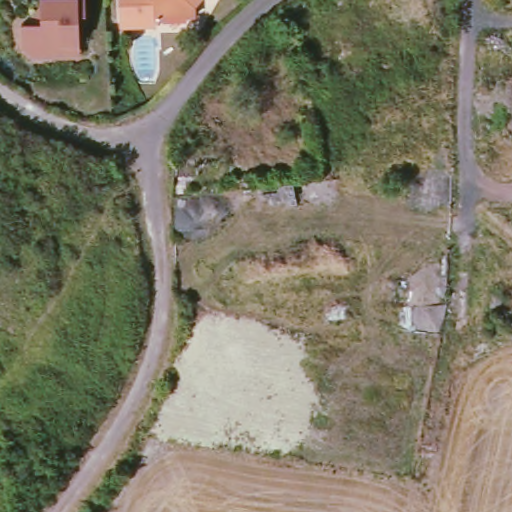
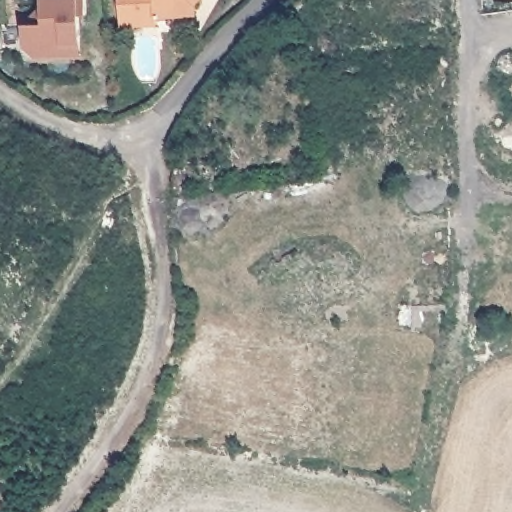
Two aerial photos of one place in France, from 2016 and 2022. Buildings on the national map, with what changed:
unchanged [(33,60),(26,53),(24,29),(44,28),(43,3),(45,0),(87,0),(88,16),(81,16),(83,44),(84,57),(65,59),(33,60)]
unchanged [(152,13),(153,18),(117,20),(115,0),(190,0),(190,10),(152,13)]

